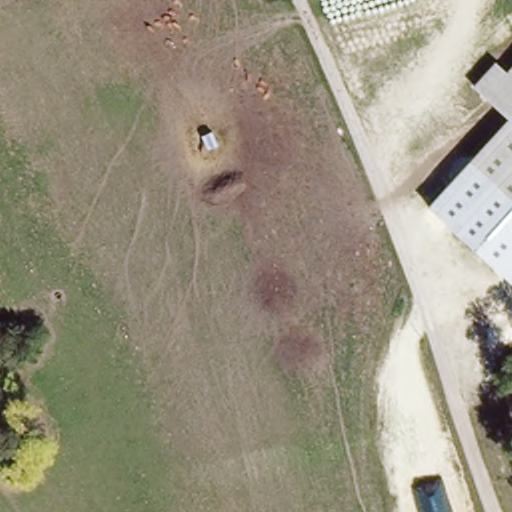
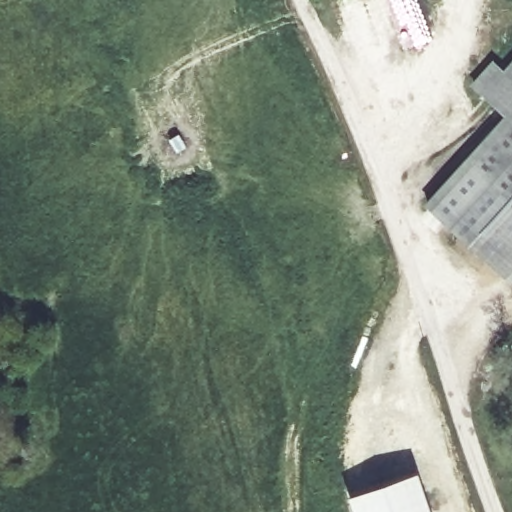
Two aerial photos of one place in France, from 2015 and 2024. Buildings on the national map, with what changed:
unchanged [(473,87),(497,62),(507,72),(512,66),(512,202),(468,162),(508,117),(473,87)]
unchanged [(428,207),(468,162),(512,202),(512,286),(428,207)]
new [(432,512),(353,512),(347,492),(417,468),(432,512)]

